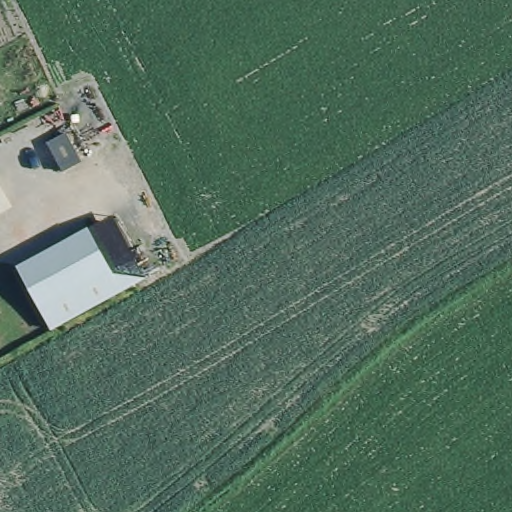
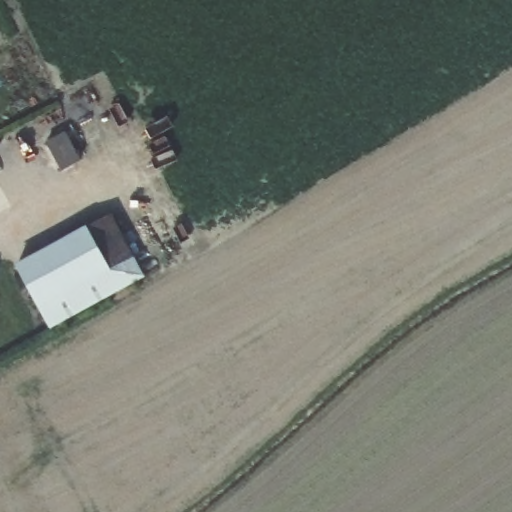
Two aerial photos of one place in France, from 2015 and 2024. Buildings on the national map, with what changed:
unchanged [(85,228),(112,214),(144,275),(47,329),(13,267),(85,228)]

